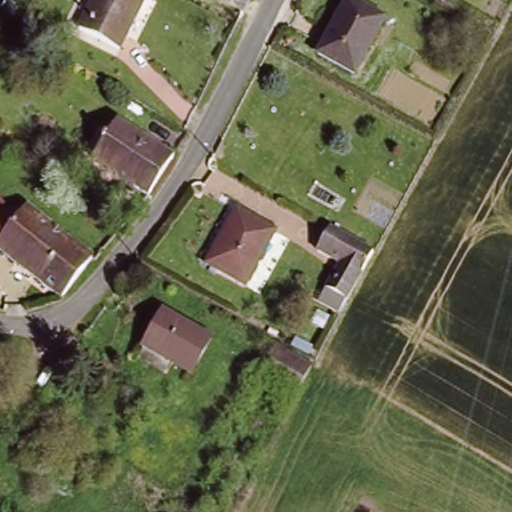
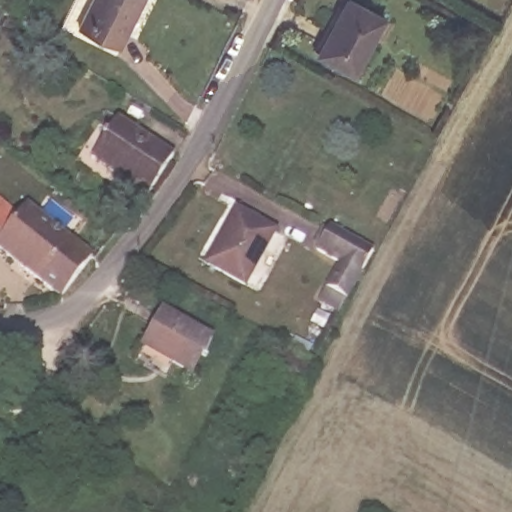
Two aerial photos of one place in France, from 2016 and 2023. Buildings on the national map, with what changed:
unchanged [(134,30),(126,47),(80,26),(92,0),(148,0),(144,9),(138,6),(128,27),(134,30)]
unchanged [(354,69),(320,49),(349,0),(358,0),(385,16),(354,69)]
unchanged [(49,30),(58,35),(52,44),(44,39),(49,30)]
unchanged [(147,136),(182,159),(154,196),(85,150),(110,113),(147,136)]
unchanged [(0,204),(15,217),(0,234),(0,204)]
unchanged [(229,223),(239,206),(282,230),(251,282),(214,261),(233,229),(229,223)]
unchanged [(3,255),(0,253),(0,234),(15,217),(20,222),(30,211),(93,264),(65,301),(60,303),(3,255)]
unchanged [(316,247),(330,224),(375,249),(347,297),(325,285),(339,261),(316,247)]
unchanged [(214,333),(192,370),(145,341),(166,305),(214,333)]
unchanged [(309,361),(297,382),(262,362),(274,341),(309,361)]

